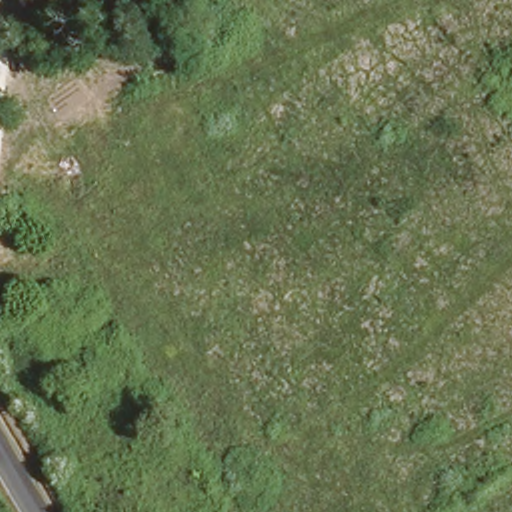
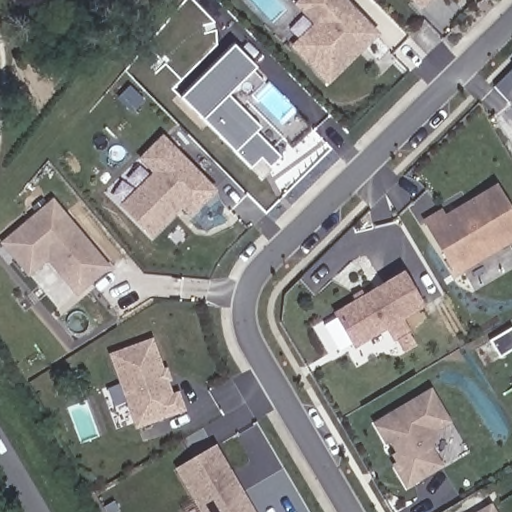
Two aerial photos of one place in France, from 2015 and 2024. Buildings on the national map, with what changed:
new [(289,47),(312,24),(293,5),(299,0),(348,0),(381,34),(329,86),(289,47)]
new [(413,0),(432,0),(423,10),(413,0)]
new [(232,48),(253,69),(224,98),(283,158),(261,179),(181,99),(232,48)]
new [(191,218),(182,209),(152,239),(119,205),(151,173),(138,159),(163,134),(218,191),(191,218)]
new [(454,278),(421,220),(441,208),(445,214),(497,183),(512,207),(512,243),(454,278)]
new [(47,262),(27,278),(0,244),(0,242),(52,198),(110,268),(77,297),(47,262)]
new [(422,308),(402,320),(409,331),(395,339),(389,359),(356,378),(341,354),(353,346),(335,314),(403,274),(422,308)]
new [(135,429),(108,354),(153,338),(173,393),(179,392),(186,411),(135,429)]
new [(451,424),(436,432),(432,448),(443,468),(407,489),(392,465),(396,463),(372,424),(431,389),(451,424)]
new [(175,469),(216,446),(256,512),(200,512),(175,469)]
new [(492,503),(498,512),(476,512),(492,503)]

